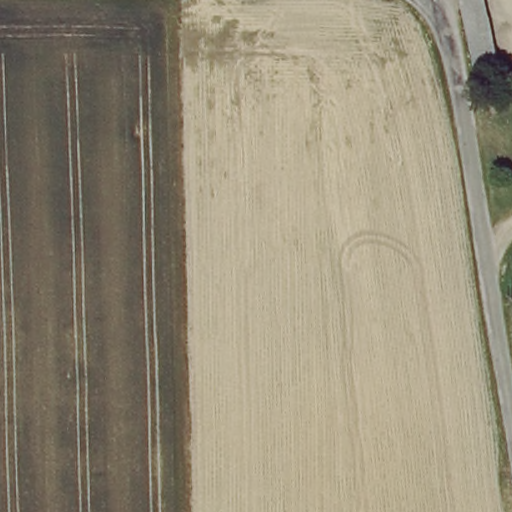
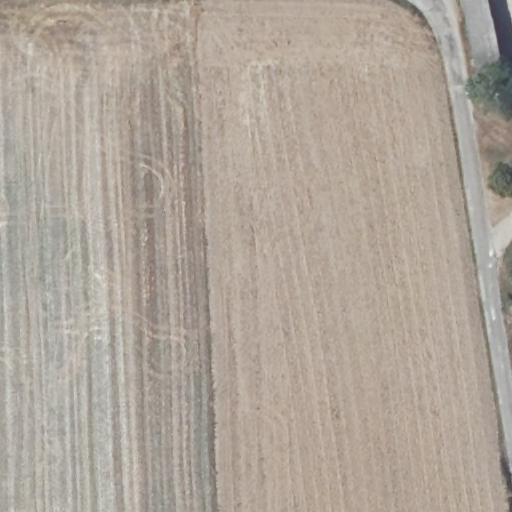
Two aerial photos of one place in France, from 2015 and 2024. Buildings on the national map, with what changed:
unchanged [(465,0),(488,0),(498,78),(475,78),(465,0)]

